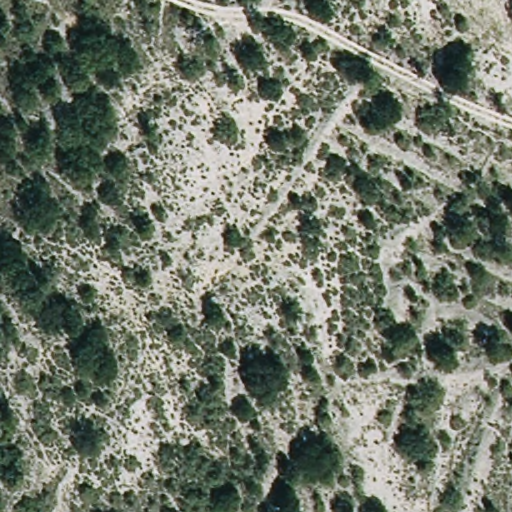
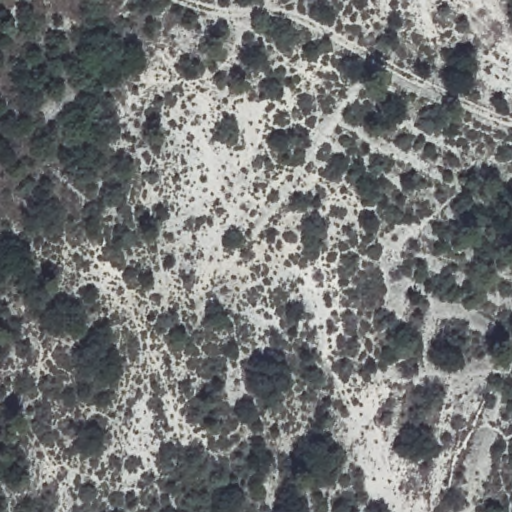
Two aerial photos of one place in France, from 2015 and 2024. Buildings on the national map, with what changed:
[]

